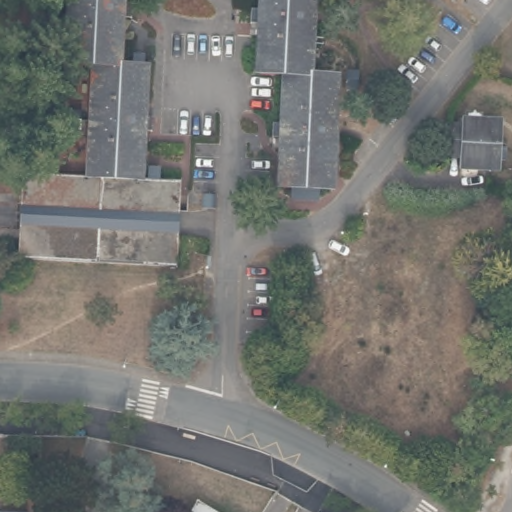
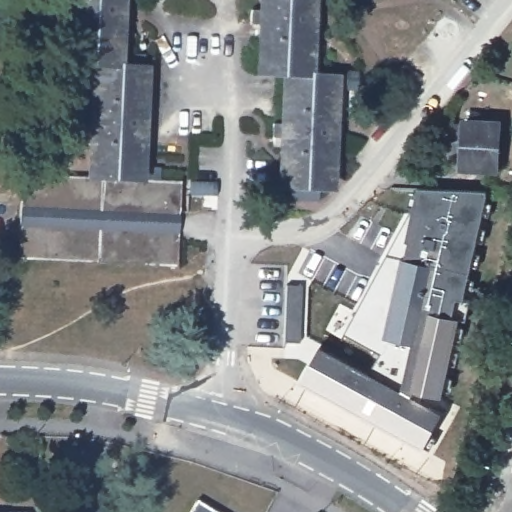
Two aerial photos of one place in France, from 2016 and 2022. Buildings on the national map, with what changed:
unchanged [(111,70),(96,70),(94,70),(66,69),(68,20),(86,20),(82,14),(86,6),(69,5),(70,0),(115,0),(115,7),(120,8),(120,21),(113,21),(111,70)]
unchanged [(305,17),(298,16),(299,22),(297,30),(304,30),(302,79),(281,78),(255,77),(257,31),(257,27),(249,27),(249,14),(257,14),(258,0),(306,0),(305,17)]
unchanged [(135,184),(88,182),(90,132),(107,132),(104,126),(109,120),(91,119),(94,70),(96,70),(111,70),(139,71),(137,121),(144,121),(144,135),(136,135),(135,184)]
unchanged [(320,135),(317,142),(325,143),(323,193),(275,190),(278,141),(271,140),(271,127),(279,127),(281,78),(302,79),(328,80),(326,131),(319,130),(320,135)]
unchanged [(464,169),(464,164),(449,164),(450,134),(465,135),(465,130),(501,132),(499,170),(499,176),(463,175),(464,169)]
unchanged [(15,261),(16,243),(19,179),(88,182),(135,184),(176,186),(172,270),(15,261)]
new [(423,450),(300,382),(320,345),(370,372),(381,354),(344,334),(411,214),(415,187),(487,190),(484,202),(491,204),(489,215),(481,214),(478,228),(485,230),(482,242),(476,240),(473,252),(480,255),(477,266),(470,265),(467,279),(474,280),(472,292),(465,290),(463,300),(469,301),(466,320),(460,318),(458,327),(464,329),(461,340),(456,339),(453,351),(458,351),(455,365),(450,363),(447,376),(452,378),(450,390),(444,389),(443,396),(413,390),(412,395),(442,411),(423,450)]
demolished [(417,415),(417,425),(383,422),(383,413),(352,411),(358,254),(378,254),(379,219),(399,220),(399,211),(422,212),(421,221),(441,222),(439,257),(457,258),(450,415),(417,415)]
unchanged [(189,512),(196,500),(217,512),(189,512)]
unchanged [(29,512),(0,512),(0,511),(29,511),(29,512)]

